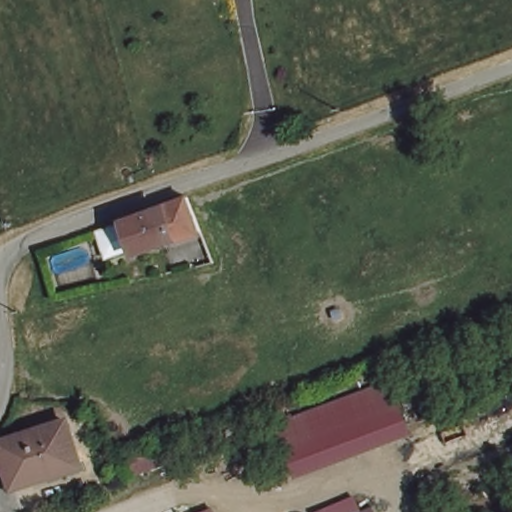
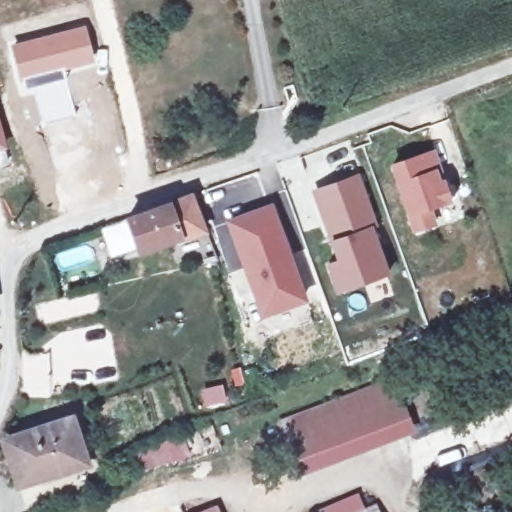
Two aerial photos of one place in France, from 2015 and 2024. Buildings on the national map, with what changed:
new [(85,24),(95,62),(20,80),(10,44),(85,24)]
new [(65,75),(75,116),(42,124),(32,87),(65,75)]
new [(7,149),(0,151),(0,120),(7,149)]
new [(429,155),(435,173),(439,185),(434,186),(444,184),(450,201),(424,210),(429,226),(410,232),(389,167),(429,155)]
new [(333,295),(332,291),(324,268),(334,264),(312,203),(309,194),(317,191),(354,178),(372,230),(357,235),(363,254),(374,250),(382,274),(383,278),(333,295)]
unchanged [(219,269),(205,272),(192,238),(139,256),(134,246),(120,251),(117,246),(109,249),(103,233),(193,201),(219,269)]
new [(262,315),(230,222),(270,207),(304,300),(262,315)]
new [(367,231),(374,250),(363,254),(357,235),(367,231)]
unchanged [(405,424),(294,463),(280,423),(390,384),(405,424)]
unchanged [(84,470),(16,489),(4,447),(71,426),(84,470)]
unchanged [(222,512),(197,512),(218,502),(222,512)]
unchanged [(373,512),(365,512),(372,510),(373,512)]

